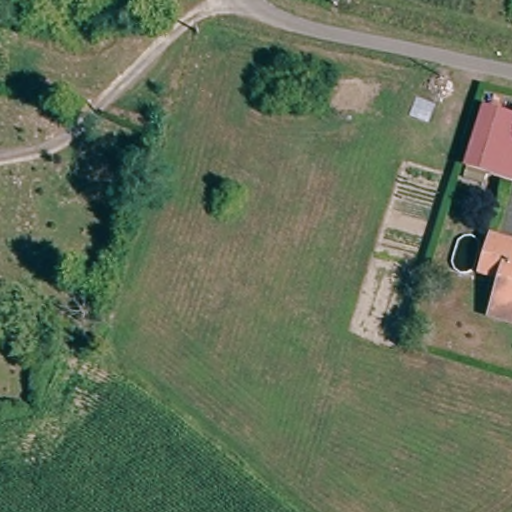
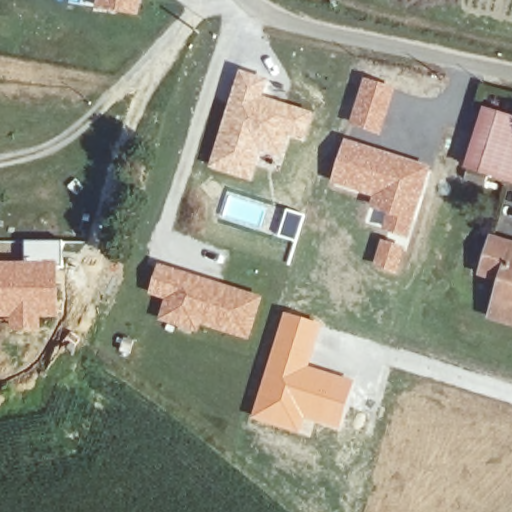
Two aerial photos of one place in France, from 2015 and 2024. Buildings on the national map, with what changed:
new [(136,16),(93,10),(95,0),(139,0),(136,16)]
new [(239,71),(267,81),(261,97),(314,113),(303,142),(289,137),(281,163),(260,155),(250,181),(207,167),(239,71)]
new [(364,79),(396,90),(381,135),(348,124),(364,79)]
unchanged [(470,171),(484,114),(512,121),(512,181),(470,171)]
new [(345,139),(432,168),(408,240),(364,224),(372,198),(331,184),(345,139)]
new [(286,208),(306,215),(297,244),(276,237),(286,208)]
new [(380,240),(407,248),(398,276),(373,269),(380,240)]
new [(62,241),(61,263),(60,319),(40,319),(40,332),(6,331),(5,319),(0,319),(0,262),(25,262),(25,241),(62,241)]
unchanged [(495,317),(505,279),(485,274),(493,241),(512,246),(512,321),(495,317)]
new [(157,263),(264,297),(250,341),(200,326),(197,335),(156,321),(164,301),(146,295),(157,263)]
new [(284,312),(322,324),(308,367),(354,381),(338,431),(305,421),(300,435),(250,419),(284,312)]

